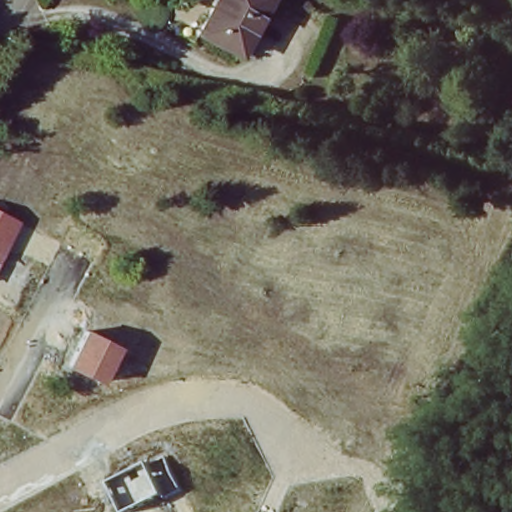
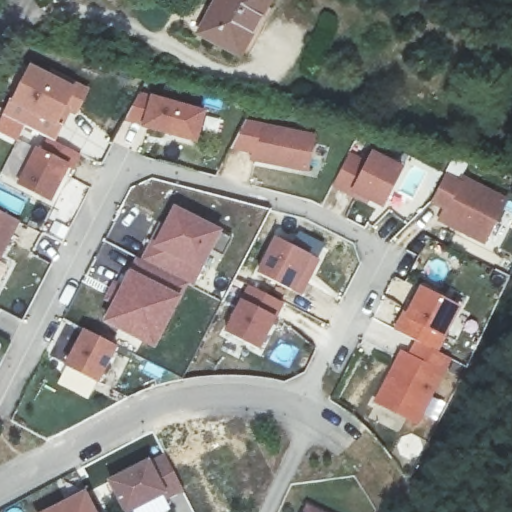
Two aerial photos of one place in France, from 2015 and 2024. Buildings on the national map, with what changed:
unchanged [(198,37),(218,0),(272,0),(239,58),(198,37)]
new [(76,103),(70,99),(61,116),(53,132),(48,130),(3,106),(11,91),(13,92),(30,59),(50,69),(53,64),(76,76),(87,82),(76,103)]
new [(137,87),(202,105),(194,134),(142,120),(143,118),(123,112),(137,87)]
new [(243,116),(312,134),(304,167),(249,153),(251,145),(240,143),(230,140),(243,116)]
new [(36,140),(41,143),(48,130),(53,132),(78,145),(71,160),(66,157),(49,192),(18,176),(36,140)]
new [(348,147),(366,157),(371,146),(401,162),(381,199),(353,184),(351,187),(331,177),(348,147)]
new [(441,173),(454,181),(457,176),(501,200),(478,241),(434,217),(441,206),(427,198),(441,173)]
new [(159,217),(164,219),(173,200),(216,223),(229,230),(221,247),(207,240),(188,276),(183,274),(141,252),(151,233),(159,217)]
unchanged [(0,262),(0,212),(20,221),(0,262)]
new [(275,229),(316,250),(297,286),(256,265),(275,229)]
new [(139,330),(104,312),(113,294),(105,289),(113,275),(121,279),(136,249),(141,252),(183,274),(175,289),(151,336),(139,330)]
new [(248,277),(280,294),(256,341),(223,324),(248,277)]
new [(400,306),(404,308),(419,280),(456,299),(433,343),(414,333),(392,322),(400,306)]
unchanged [(118,348),(101,384),(65,366),(83,331),(118,348)]
new [(399,343),(407,347),(414,333),(433,343),(447,350),(413,414),(374,393),(399,343)]
new [(218,454),(236,490),(214,499),(208,484),(202,487),(191,466),(218,454)]
unchanged [(130,512),(125,512),(110,483),(149,462),(165,458),(179,486),(164,494),(130,512)]
new [(99,512),(37,512),(34,508),(84,483),(99,512)]
new [(299,492),(340,512),(290,512),(292,508),(299,492)]

